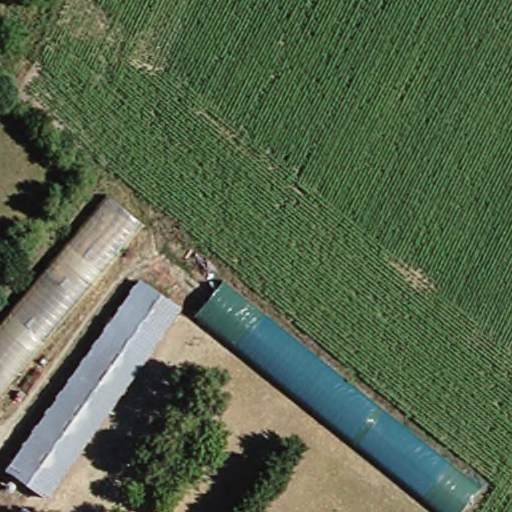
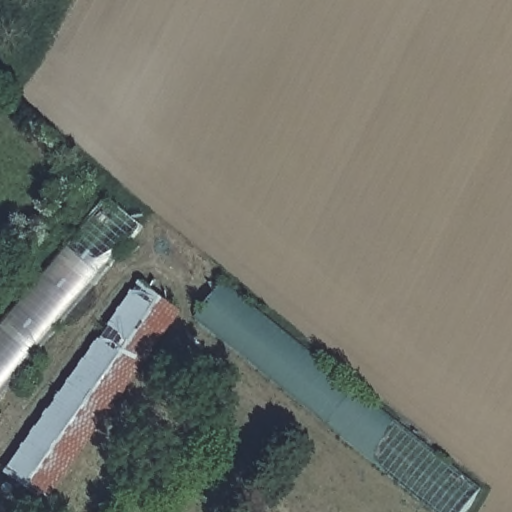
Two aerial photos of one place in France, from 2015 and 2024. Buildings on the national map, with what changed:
unchanged [(0,392),(0,323),(104,197),(138,225),(0,392)]
unchanged [(477,493),(462,512),(435,512),(192,319),(218,287),(477,493)]
unchanged [(172,316),(74,457),(45,497),(6,471),(34,430),(132,288),(172,316)]

